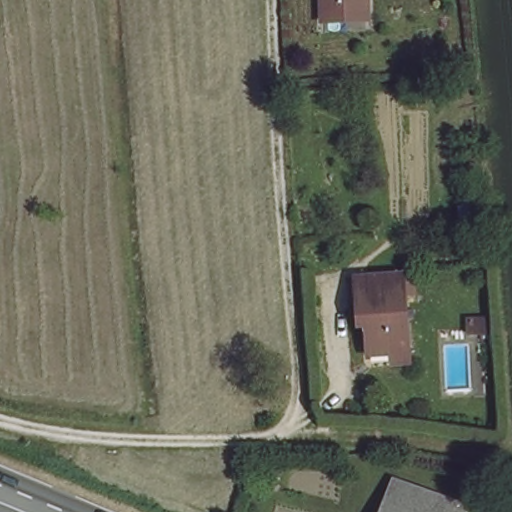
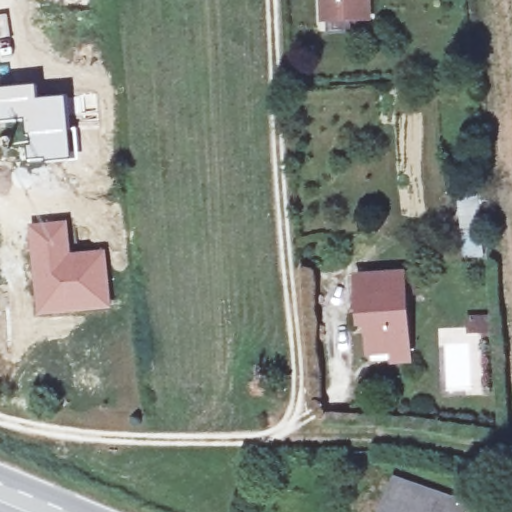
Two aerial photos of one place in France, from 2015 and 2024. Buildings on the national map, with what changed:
unchanged [(364,10),(321,12),(321,0),(363,0),(364,10)]
new [(37,84),(39,98),(67,96),(72,128),(75,128),(79,160),(29,163),(22,122),(0,124),(0,88),(37,84)]
new [(68,219),(72,252),(105,248),(112,309),(35,315),(26,225),(68,219)]
unchanged [(465,258),(462,229),(483,227),(485,256),(465,258)]
unchanged [(390,365),(390,352),(369,354),(367,322),(359,323),(357,276),(402,275),(417,274),(419,296),(404,297),(407,351),(408,364),(390,365)]
unchanged [(470,318),(490,317),(491,331),(470,332),(470,318)]
unchanged [(467,504),(464,512),(381,512),(394,478),(467,504)]

